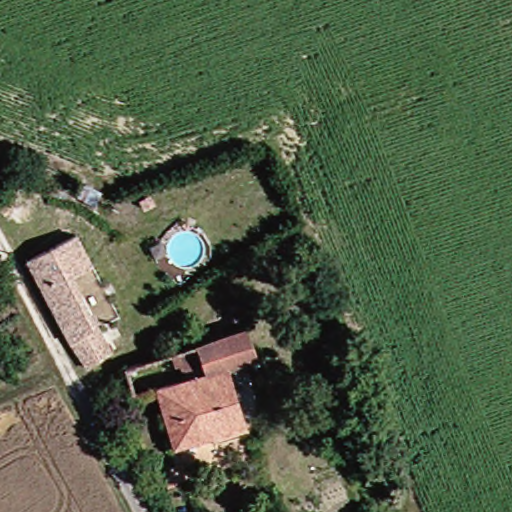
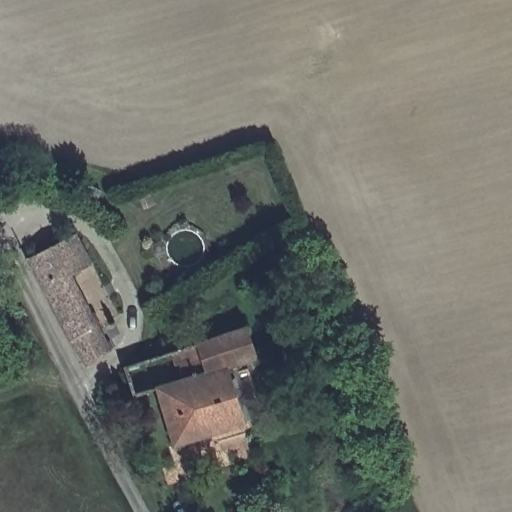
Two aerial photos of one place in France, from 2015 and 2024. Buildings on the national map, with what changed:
unchanged [(72,236),(89,269),(69,279),(108,357),(80,373),(22,261),(72,236)]
unchanged [(163,387),(213,373),(205,341),(252,327),(263,359),(233,368),(253,424),(183,445),(163,387)]

